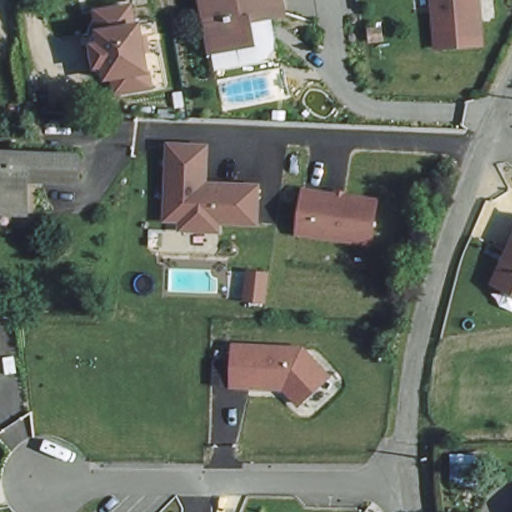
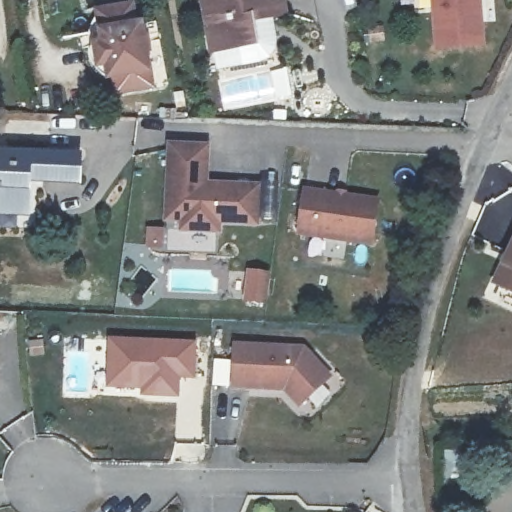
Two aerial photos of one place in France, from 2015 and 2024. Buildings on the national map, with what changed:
unchanged [(282,13),(251,18),(255,43),(212,49),(202,0),(279,0),(282,13)]
unchanged [(442,44),(436,0),(483,0),(485,16),(488,37),(442,44)]
unchanged [(137,23),(147,22),(157,89),(110,95),(107,75),(97,71),(92,62),(93,46),(100,37),(95,7),(134,2),(137,23)]
unchanged [(165,201),(168,144),(207,145),(205,181),(259,184),(257,220),(218,218),(218,227),(180,225),(180,216),(165,216),(165,201)]
unchanged [(32,174),(28,208),(0,208),(0,148),(82,151),(80,174),(32,174)]
unchanged [(304,187),(378,199),(371,240),(297,229),(304,187)]
unchanged [(491,284),(512,241),(512,294),(491,284)]
new [(245,267),(270,271),(267,304),(242,301),(245,267)]
new [(105,336),(195,340),(195,380),(180,379),(180,397),(138,396),(138,388),(105,388),(105,336)]
unchanged [(299,407),(283,390),(231,388),(234,342),(305,345),(335,378),(299,407)]

